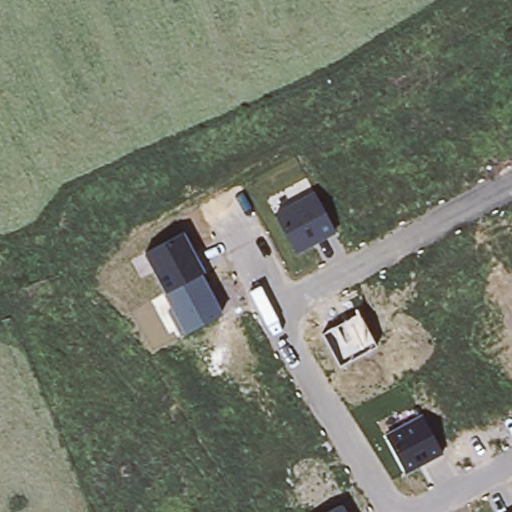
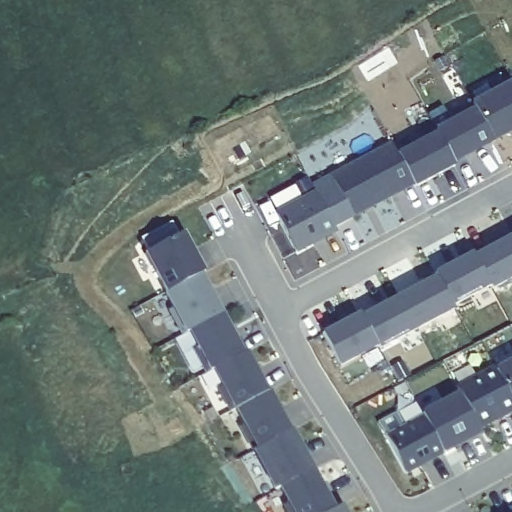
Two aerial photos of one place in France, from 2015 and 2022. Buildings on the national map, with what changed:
new [(474,108),(471,103),(512,81),(512,134),(493,145),(474,108)]
unchanged [(437,136),(436,134),(451,125),(449,121),(474,108),(493,145),(453,166),(437,136)]
unchanged [(437,136),(453,166),(455,169),(415,190),(397,157),(437,136)]
new [(352,218),(330,177),(392,146),(397,157),(414,187),(352,218)]
unchanged [(337,234),(297,255),(277,218),(316,196),(337,234)]
unchanged [(146,257),(184,236),(205,276),(201,278),(167,296),(146,257)]
new [(361,317),(437,277),(435,273),(474,252),(477,256),(512,237),(512,280),(491,292),(490,287),(452,306),(455,311),(379,350),(361,317)]
unchanged [(190,335),(182,339),(170,314),(174,312),(165,297),(167,296),(201,278),(222,318),(190,335)]
new [(272,491),(251,452),(255,450),(235,411),(212,369),(208,372),(190,335),(222,318),(227,315),(247,355),(250,353),(270,391),(312,469),(335,512),(290,512),(278,488),(272,491)]
new [(379,350),(341,370),(324,337),(361,317),(379,350)]
new [(495,370),(512,360),(512,402),(495,370)]
unchanged [(512,402),(512,415),(480,433),(457,390),(495,370),(512,402)]
new [(425,414),(460,396),(480,433),(445,452),(425,414)]
unchanged [(445,452),(407,472),(387,435),(425,414),(445,452)]
unchanged [(336,512),(342,509),(344,512),(336,512)]

